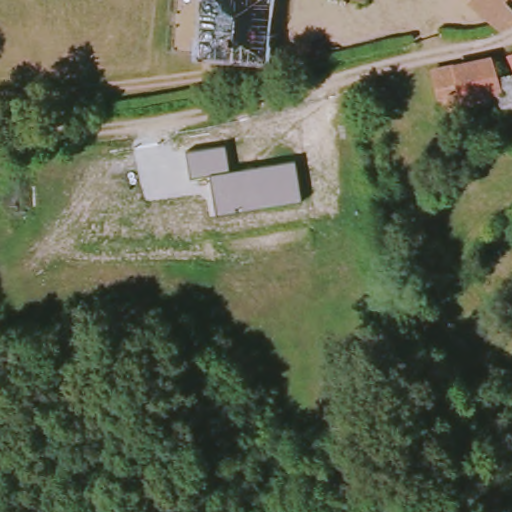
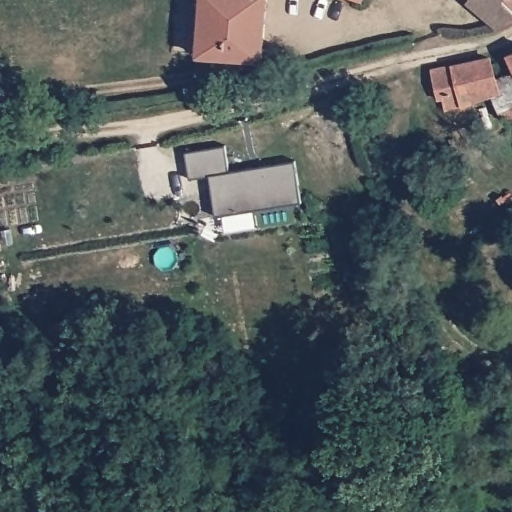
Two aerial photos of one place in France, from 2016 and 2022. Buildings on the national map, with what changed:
unchanged [(270,0),(265,66),(197,61),(202,0),(270,0)]
unchanged [(466,0),(504,0),(512,8),(512,17),(494,29),(463,4),(466,0)]
unchanged [(512,0),(512,8),(504,0),(512,0)]
unchanged [(512,52),(512,61),(510,53),(512,52)]
unchanged [(496,92),(446,112),(442,99),(434,100),(428,71),(488,58),(496,92)]
unchanged [(506,92),(501,80),(511,75),(512,77),(512,120),(498,116),(489,101),(506,92)]
unchanged [(224,146),(228,172),(295,162),(301,202),(217,216),(209,175),(191,178),(187,153),(224,146)]

